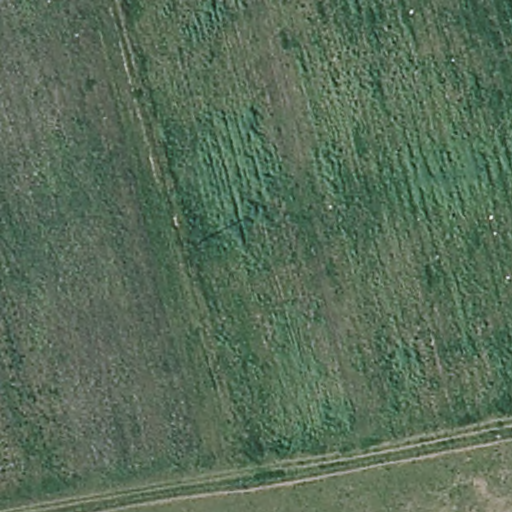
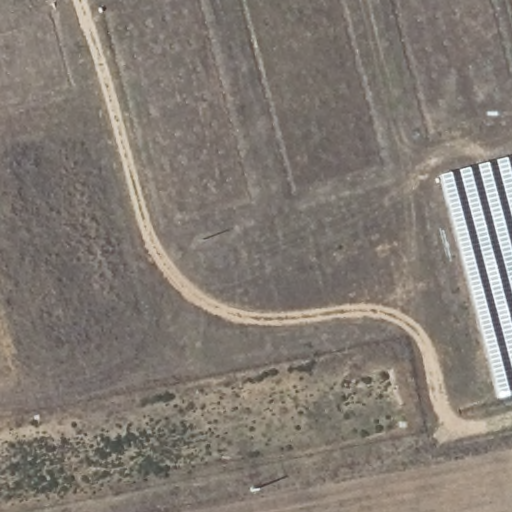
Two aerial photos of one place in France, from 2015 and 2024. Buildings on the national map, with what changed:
new [(496,398),(439,174),(512,156),(512,394),(496,398)]

